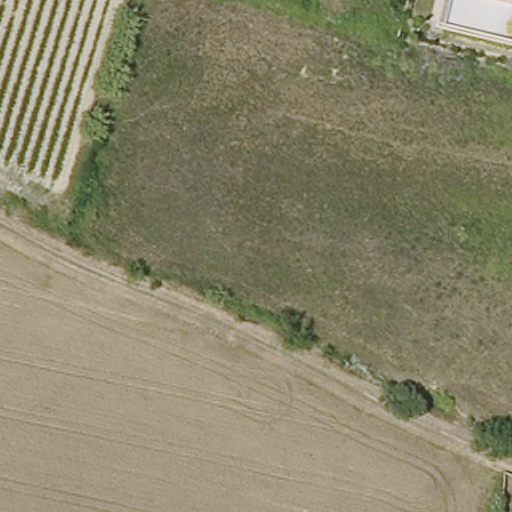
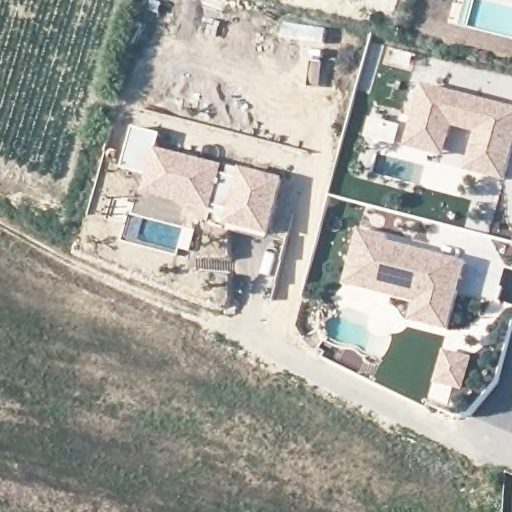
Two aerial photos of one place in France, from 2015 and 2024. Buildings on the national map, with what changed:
new [(507,182),(465,172),(477,134),(454,129),(445,158),(405,147),(422,84),(512,107),(512,160),(507,182)]
new [(161,135),(157,150),(225,165),(211,213),(144,195),(148,177),(122,171),(134,129),(161,135)]
new [(225,165),(284,178),(268,237),(210,218),(225,165)]
new [(359,227),(382,234),(414,247),(467,260),(449,330),(409,320),(412,304),(342,285),(359,227)]

